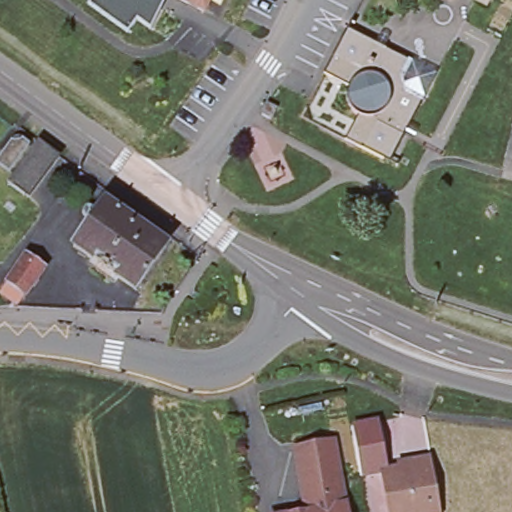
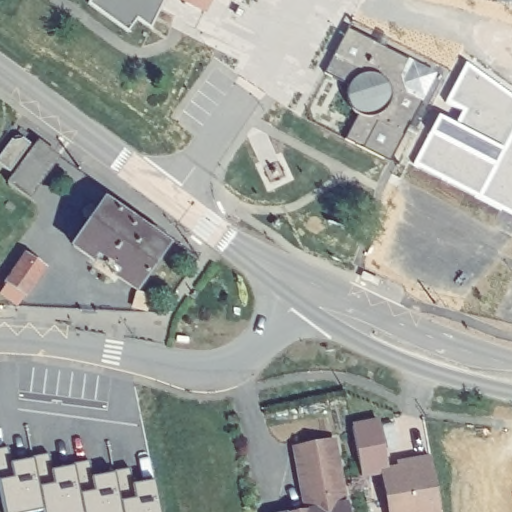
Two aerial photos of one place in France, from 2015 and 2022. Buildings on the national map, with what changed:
unchanged [(157,22),(141,14),(135,26),(98,0),(168,0),(157,22)]
unchanged [(210,3),(205,0),(211,0),(210,3)]
unchanged [(349,36),(352,37),(356,32),(413,62),(440,76),(426,101),(396,162),(390,159),(388,162),(350,141),(362,117),(359,115),(356,113),(355,111),(352,108),(351,105),(350,102),(350,99),(350,96),(351,93),(352,90),(328,76),(349,36)]
new [(459,123),(465,111),(447,102),(468,65),(512,96),(512,213),(418,163),(442,116),(459,123)]
demolished [(285,113),(281,124),(269,119),(273,108),(285,113)]
unchanged [(37,147),(16,175),(2,164),(19,143),(27,143),(30,140),(37,147)]
unchanged [(31,198),(15,185),(46,144),(63,156),(31,198)]
unchanged [(120,280),(93,261),(75,248),(106,205),(150,235),(168,249),(137,292),(120,280)]
unchanged [(8,286),(30,256),(47,269),(25,299),(8,286)]
new [(387,468),(379,470),(380,476),(360,480),(350,424),(378,419),(387,468)]
unchanged [(331,443),(335,443),(348,512),(309,512),(296,450),(331,443)]
new [(43,512),(3,512),(0,495),(0,450),(7,448),(11,463),(32,459),(31,457),(48,454),(51,471),(73,467),(73,463),(89,461),(92,478),(113,474),(113,472),(129,469),(132,485),(153,480),(160,512),(43,512)]
unchanged [(405,465),(408,459),(430,455),(439,512),(386,512),(379,470),(405,465)]

